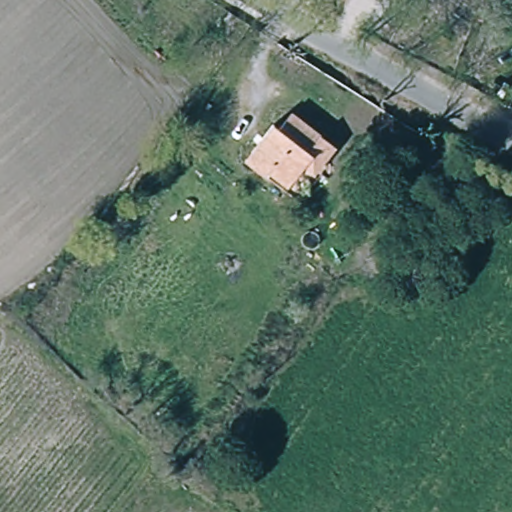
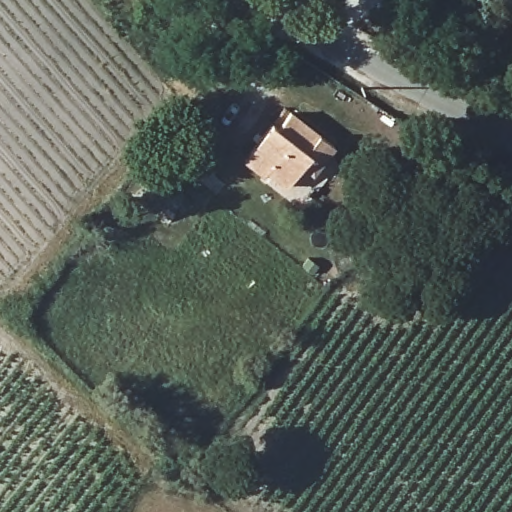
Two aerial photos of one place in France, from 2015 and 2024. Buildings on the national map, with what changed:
unchanged [(308,167),(293,187),(273,171),(270,175),(250,160),(278,124),(284,129),(297,113),(340,147),(327,164),(318,175),(308,167)]

